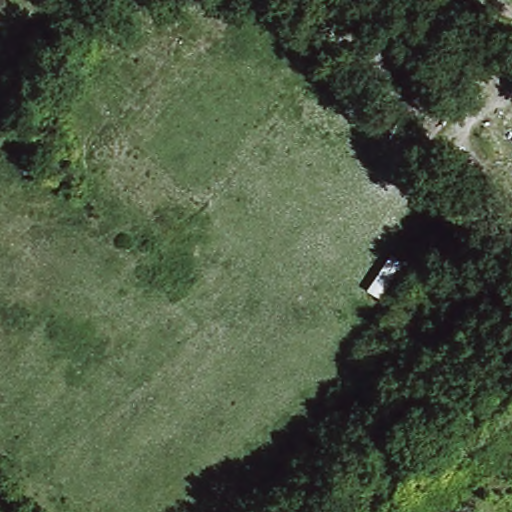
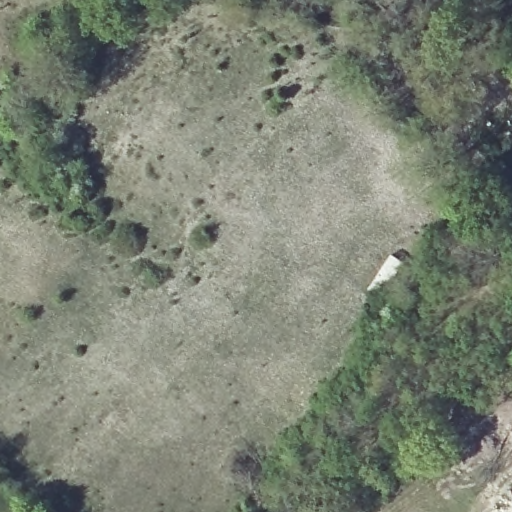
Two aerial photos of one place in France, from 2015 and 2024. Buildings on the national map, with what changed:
unchanged [(368,290),(390,256),(404,264),(381,298),(368,290)]

